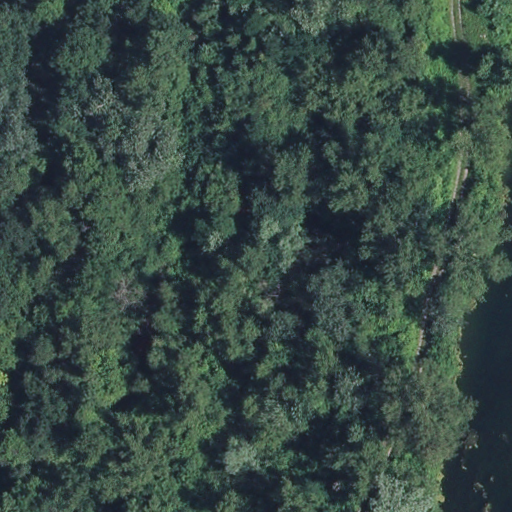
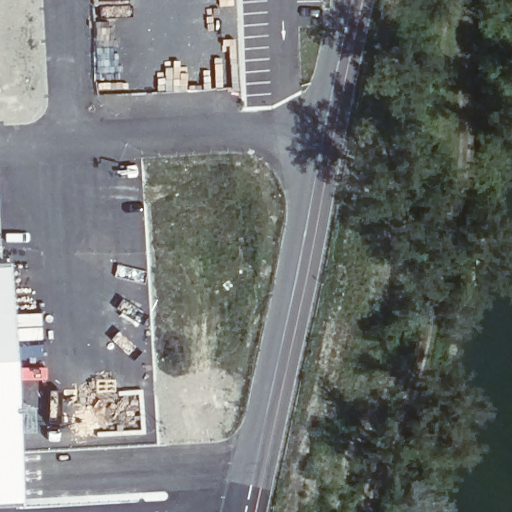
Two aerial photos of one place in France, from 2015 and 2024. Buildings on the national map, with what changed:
new [(18,504),(0,504),(0,263),(7,263),(18,504)]

